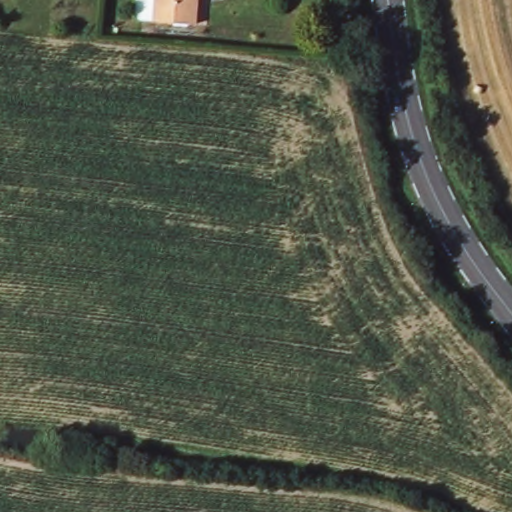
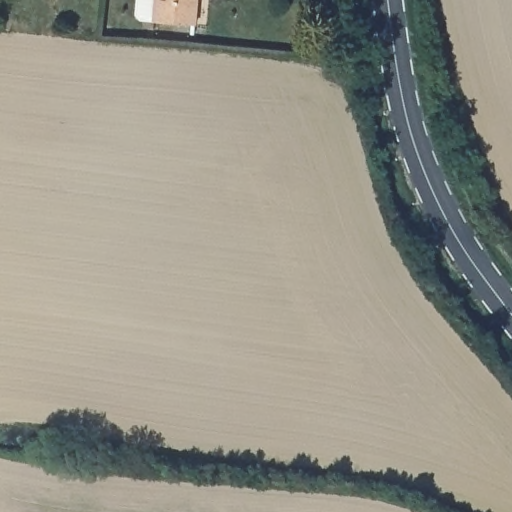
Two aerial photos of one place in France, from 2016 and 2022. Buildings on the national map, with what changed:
unchanged [(154,13),(156,0),(203,0),(201,18),(154,13)]

